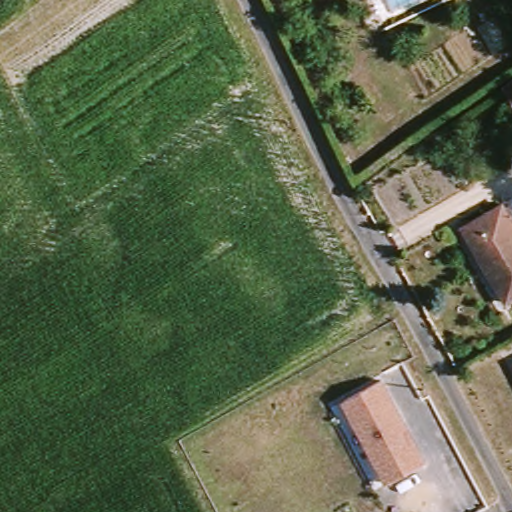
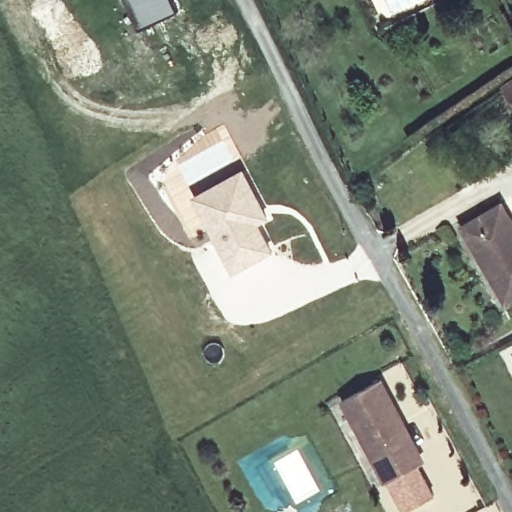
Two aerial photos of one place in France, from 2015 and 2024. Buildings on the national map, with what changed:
new [(178,10),(140,27),(128,0),(173,0),(178,10)]
unchanged [(503,91),(512,85),(512,106),(503,91)]
new [(244,166),(271,218),(263,221),(276,249),(234,270),(192,193),(244,166)]
unchanged [(465,229),(505,207),(512,220),(512,304),(508,306),(465,229)]
unchanged [(341,400),(384,378),(427,461),(386,484),(341,400)]

